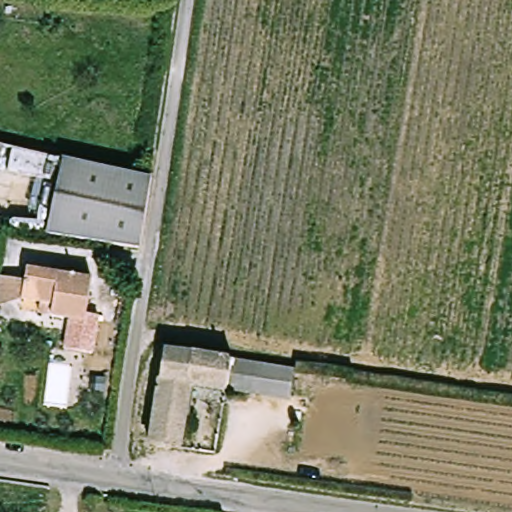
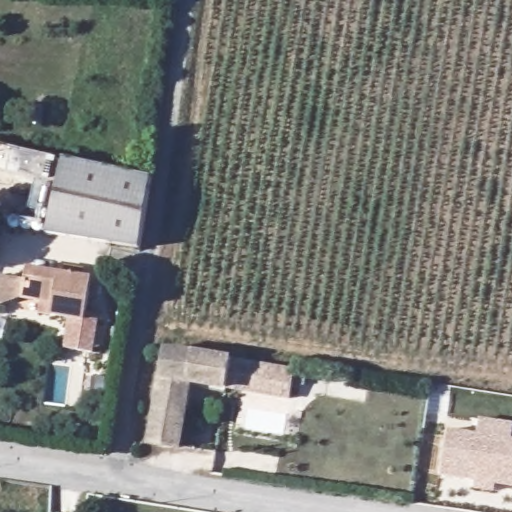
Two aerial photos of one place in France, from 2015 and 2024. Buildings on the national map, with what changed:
unchanged [(70,147),(63,176),(0,161),(0,131),(70,147)]
unchanged [(63,176),(70,147),(157,168),(147,239),(55,226),(63,176)]
unchanged [(93,282),(86,324),(52,318),(55,307),(23,302),(28,270),(93,282)]
unchanged [(20,302),(3,299),(7,274),(25,279),(20,302)]
unchanged [(190,385),(177,452),(147,447),(165,353),(250,364),(245,392),(190,385)]
unchanged [(278,368),(294,371),(289,398),(245,392),(250,364),(278,368)]
new [(482,421),(512,425),(512,486),(443,476),(450,431),(480,435),(482,421)]

